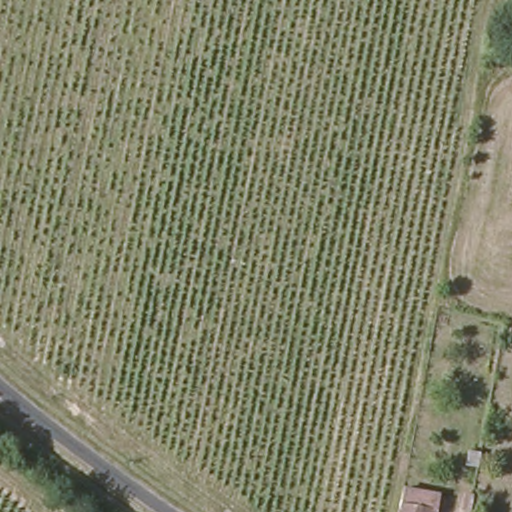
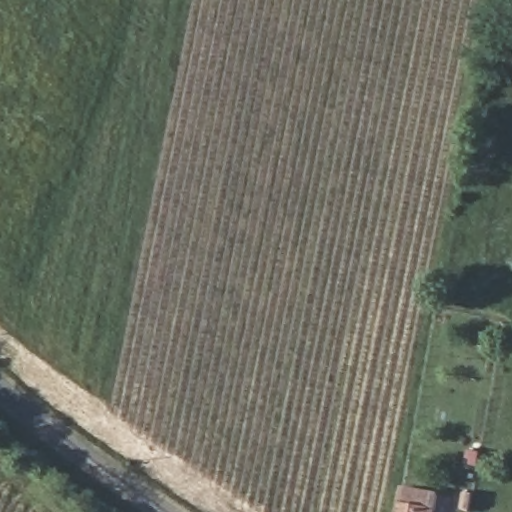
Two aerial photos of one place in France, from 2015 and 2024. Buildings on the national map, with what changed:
unchanged [(437,493),(434,512),(396,512),(401,487),(437,493)]

